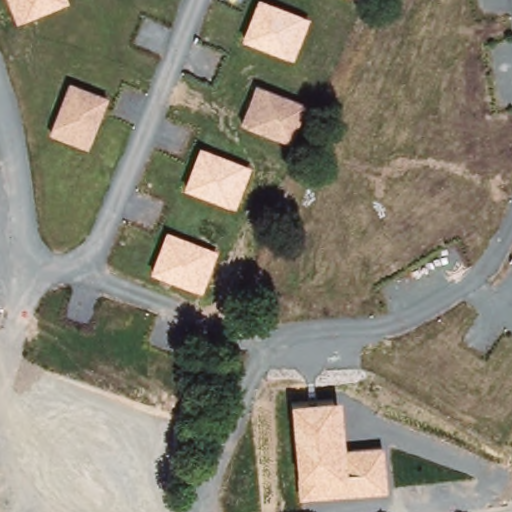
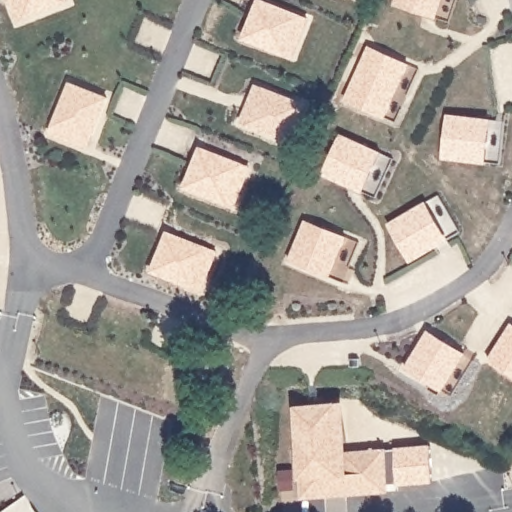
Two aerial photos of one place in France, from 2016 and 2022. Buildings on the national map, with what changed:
unchanged [(68,0),(69,2),(16,22),(8,0),(68,0)]
unchanged [(257,0),(264,0),(309,18),(293,60),(242,39),(257,0)]
new [(395,5),(396,0),(442,0),(436,17),(395,5)]
new [(384,114),(343,98),(368,46),(409,63),(384,114)]
unchanged [(59,129),(53,126),(72,78),(109,93),(94,130),(90,141),(59,129)]
unchanged [(306,102),(291,143),(239,122),(255,83),(306,102)]
new [(442,157),(446,114),(491,118),(485,163),(442,157)]
new [(360,191),(322,174),(339,131),(380,151),(360,191)]
unchanged [(183,188),(200,146),(251,166),(234,208),(183,188)]
new [(409,261),(388,222),(425,202),(448,239),(409,261)]
new [(329,275),(288,258),(304,219),(346,237),(329,275)]
unchanged [(166,231),(217,251),(201,291),(150,272),(166,231)]
new [(406,367),(428,330),(467,353),(444,390),(406,367)]
unchanged [(299,500),(298,477),(292,407),(342,403),(346,450),(385,449),(388,493),(299,500)]
new [(397,486),(393,448),(429,445),(432,481),(397,486)]

